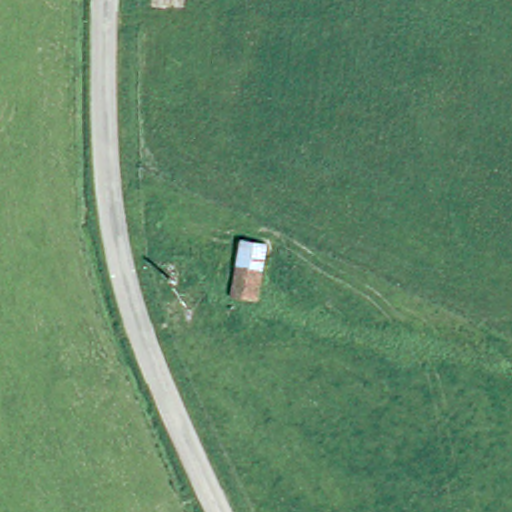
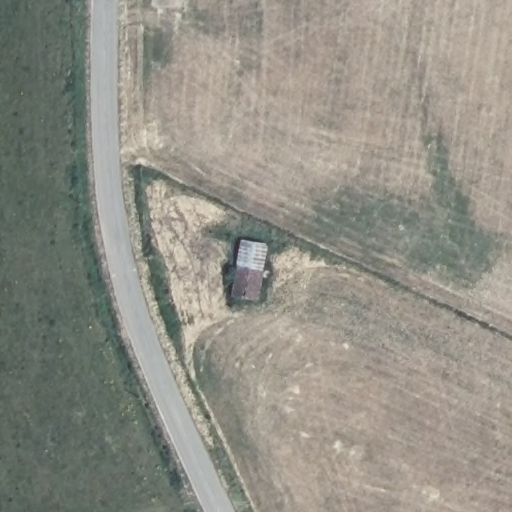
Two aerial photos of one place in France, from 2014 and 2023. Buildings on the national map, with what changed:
unchanged [(234,271),(259,276),(254,304),(229,299),(234,271)]

